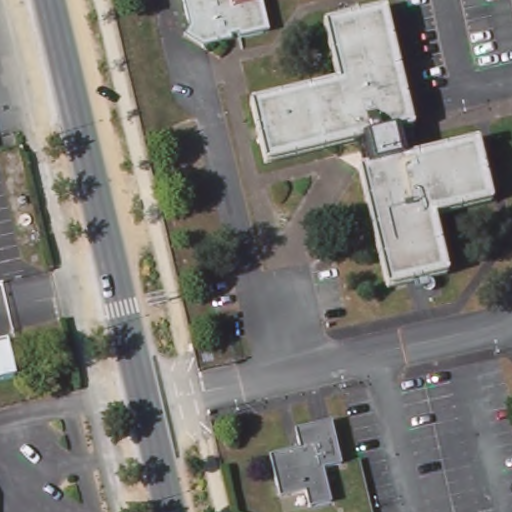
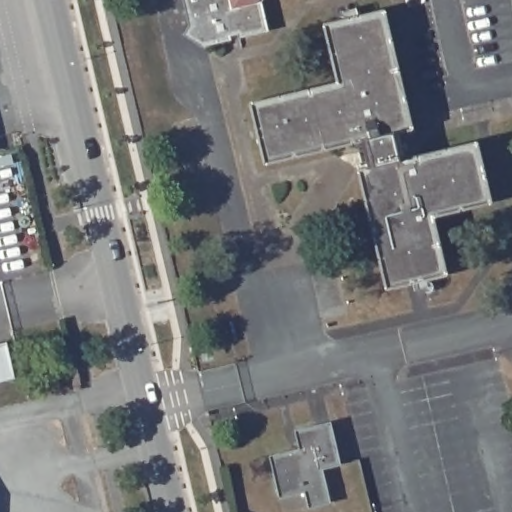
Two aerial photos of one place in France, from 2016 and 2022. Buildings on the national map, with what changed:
unchanged [(183,20),(178,0),(259,0),(265,30),(234,38),(234,34),(225,36),(225,39),(199,46),(180,34),(185,26),(183,20)]
unchanged [(334,80),(321,25),(379,10),(408,126),(395,130),(401,158),(473,141),(487,201),(429,216),(442,273),(383,288),(354,170),(365,167),(357,139),(261,162),(245,102),(334,80)]
unchanged [(7,342),(15,377),(0,381),(0,343),(7,342)]
unchanged [(294,448),(290,431),(326,422),(336,464),(320,468),(327,501),(303,507),(301,490),(276,497),(267,456),(294,448)]

